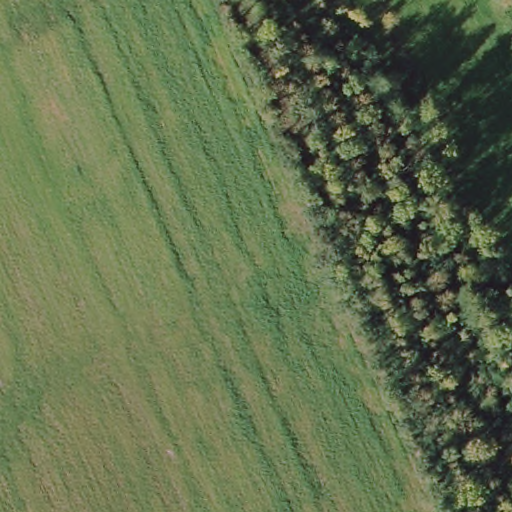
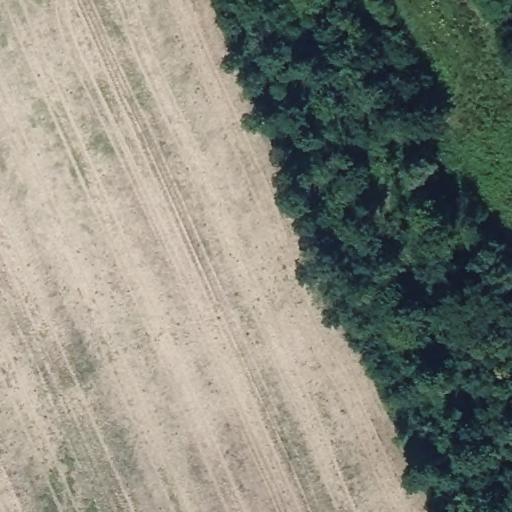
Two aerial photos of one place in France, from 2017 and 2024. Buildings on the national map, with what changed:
[]

